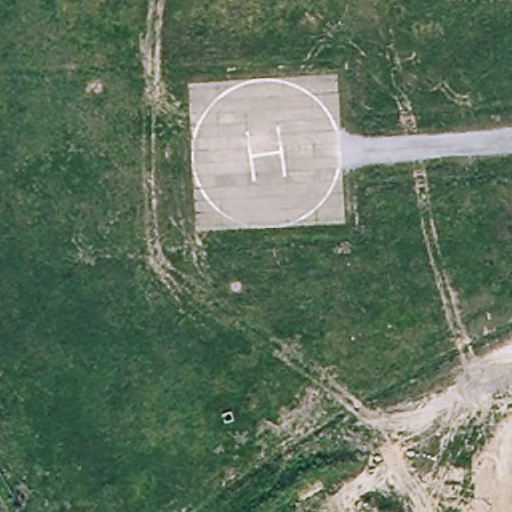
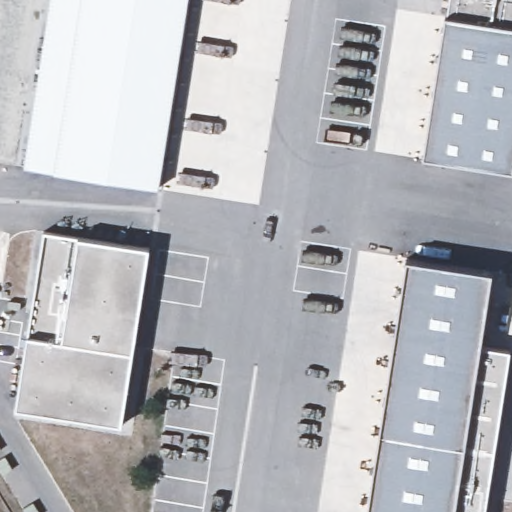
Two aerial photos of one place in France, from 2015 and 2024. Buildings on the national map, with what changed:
new [(24,169),(50,0),(188,0),(159,189),(24,169)]
new [(447,17),(449,0),(512,0),(512,173),(423,159),(447,17)]
new [(78,237),(150,248),(122,426),(15,410),(26,336),(43,231),(78,237)]
new [(494,272),(482,346),(510,351),(485,512),(368,512),(407,259),(494,272)]
demolished [(461,490),(512,499),(512,512),(458,512),(461,490)]

